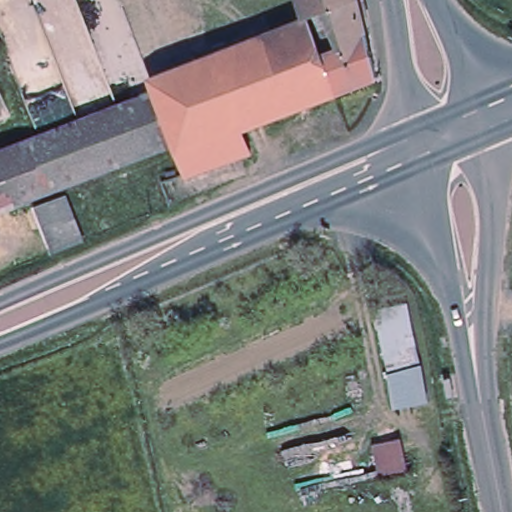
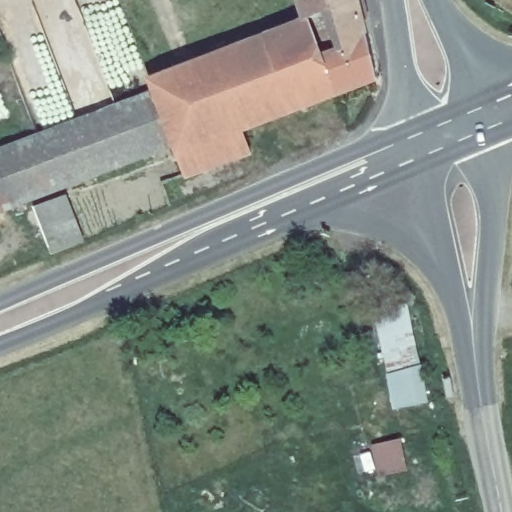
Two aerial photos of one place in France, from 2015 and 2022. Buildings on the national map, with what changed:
unchanged [(334,22),(324,26),(321,19),(308,25),(305,25),(297,0),(355,0),(356,5),(366,42),(375,81),(334,98),(321,62),(326,60),(324,49),(339,42),(334,22)]
unchanged [(186,44),(206,35),(253,17),(264,42),(234,55),(263,126),(243,135),(241,135),(178,160),(173,150),(154,97),(151,89),(196,70),(186,44)]
unchanged [(305,25),(308,25),(321,62),(334,98),(294,114),(264,42),(305,25)]
unchanged [(264,42),(294,114),(263,126),(234,55),(264,42)]
unchanged [(0,181),(0,156),(41,140),(80,125),(154,97),(173,150),(11,210),(0,181)]
unchanged [(241,135),(249,156),(186,181),(178,160),(241,135)]
unchanged [(0,214),(0,181),(11,210),(0,214)]
unchanged [(66,198),(82,240),(48,252),(33,210),(66,198)]
unchanged [(408,304),(429,401),(401,407),(379,309),(408,304)]
unchanged [(448,388),(451,406),(446,407),(442,390),(448,388)]
unchanged [(402,440),(408,471),(379,475),(374,445),(402,440)]

